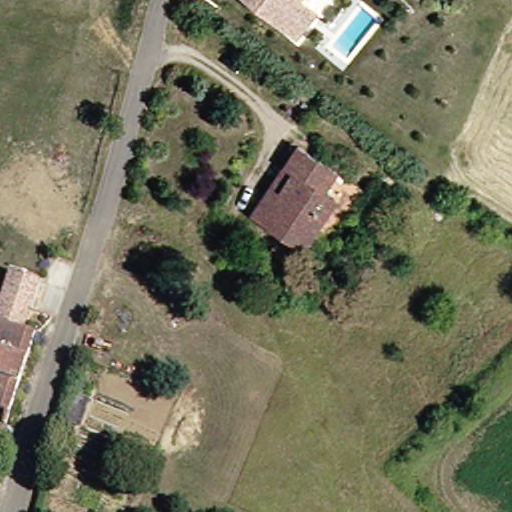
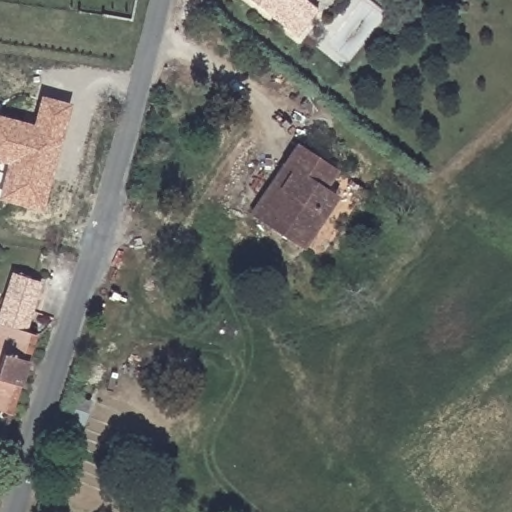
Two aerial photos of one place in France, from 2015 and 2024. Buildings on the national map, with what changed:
unchanged [(319,7),(297,34),(254,0),(310,0),(319,7)]
new [(44,211),(0,201),(0,190),(6,164),(0,163),(0,115),(33,124),(40,94),(71,104),(44,211)]
unchanged [(328,188),(341,195),(309,246),(268,220),(258,214),(289,164),(302,143),(341,167),(328,188)]
unchanged [(41,267),(27,320),(43,325),(35,351),(0,341),(0,328),(19,262),(41,267)]
unchanged [(13,419),(5,417),(7,408),(0,406),(0,341),(35,351),(13,419)]
unchanged [(111,512),(109,512),(109,511),(111,512)]

